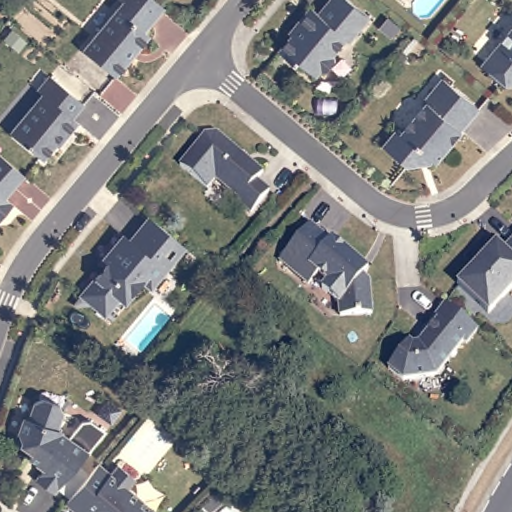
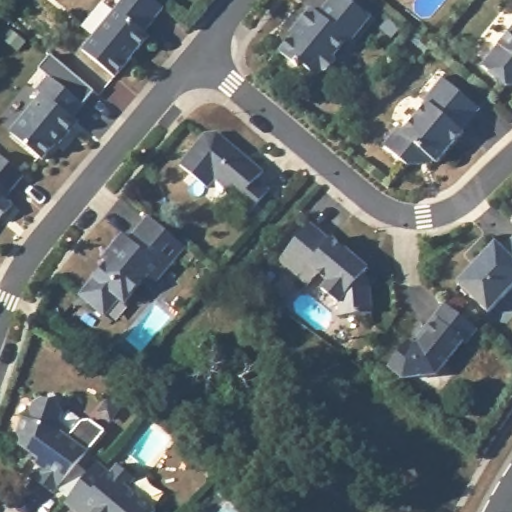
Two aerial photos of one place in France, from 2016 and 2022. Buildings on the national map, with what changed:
unchanged [(145,32),(150,36),(116,77),(82,50),(122,2),(120,0),(155,0),(165,8),(145,32)]
unchanged [(348,39),(336,54),(336,60),(327,71),(320,72),(317,75),(301,62),(298,66),(280,51),(293,35),(299,35),(303,30),(297,25),(312,8),(319,14),(331,0),(349,0),(371,18),(350,41),(348,39)]
unchanged [(483,66),(512,31),(512,86),(507,86),(483,66)]
unchanged [(84,104),(73,118),(78,123),(66,136),(63,134),(56,143),(56,144),(43,159),(10,132),(42,94),(37,90),(49,75),(84,104)]
unchanged [(462,130),(463,132),(437,163),(428,155),(420,164),(408,165),(385,146),(399,129),(404,133),(428,104),(425,101),(444,79),(480,109),(462,130)]
unchanged [(206,139),(217,138),(264,177),(257,184),(270,195),(251,218),(238,206),(239,204),(215,184),(208,193),(180,169),(206,139)]
unchanged [(5,198),(13,204),(6,213),(0,209),(0,155),(17,169),(24,175),(5,198)]
unchanged [(185,252),(151,293),(143,286),(125,308),(119,303),(105,320),(81,299),(108,268),(103,264),(123,239),(130,245),(149,222),(185,252)]
unchanged [(310,224),(330,241),(332,239),(361,263),(359,265),(366,271),(363,274),(369,279),(372,313),(340,315),(339,303),(322,289),(328,281),(318,273),(309,284),(280,259),(310,224)]
unchanged [(458,283),(496,243),(503,249),(512,240),(512,288),(489,313),(458,283)]
unchanged [(478,330),(467,344),(464,342),(437,376),(403,379),(388,368),(410,340),(414,344),(419,343),(426,335),(423,333),(445,304),(478,330)]
unchanged [(55,493),(38,479),(46,469),(41,465),(45,461),(26,444),(21,432),(26,416),(31,418),(37,399),(44,396),(61,402),(65,409),(59,427),(64,429),(64,431),(89,452),(55,493)]
unchanged [(136,484),(128,494),(150,512),(70,512),(65,508),(90,479),(99,468),(111,478),(117,469),(136,484)]

